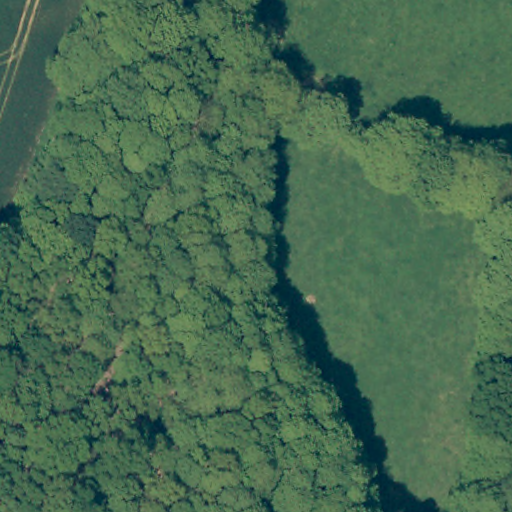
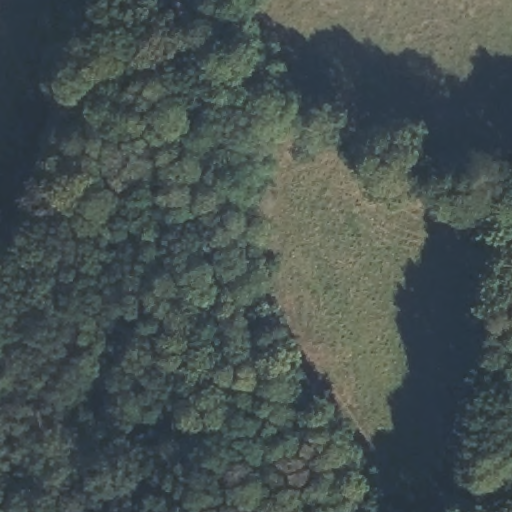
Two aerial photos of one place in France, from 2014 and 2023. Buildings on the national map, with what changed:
unchanged [(142,7),(144,0),(206,0),(197,26),(142,7)]

